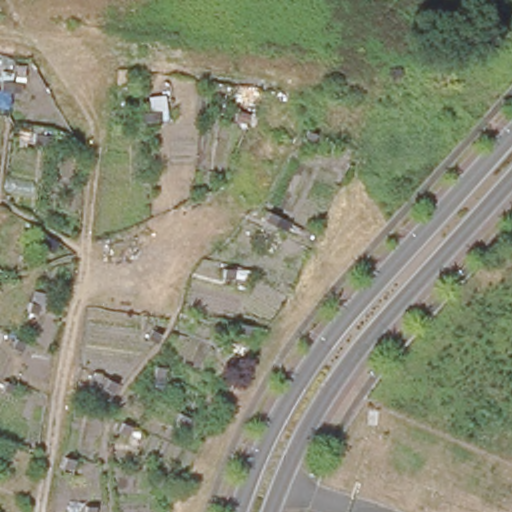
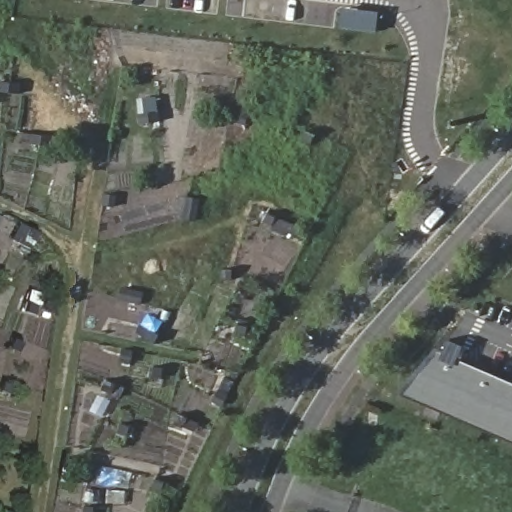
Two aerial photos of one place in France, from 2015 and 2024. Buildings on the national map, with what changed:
new [(438,350),(512,382),(512,443),(399,396),(438,350)]

